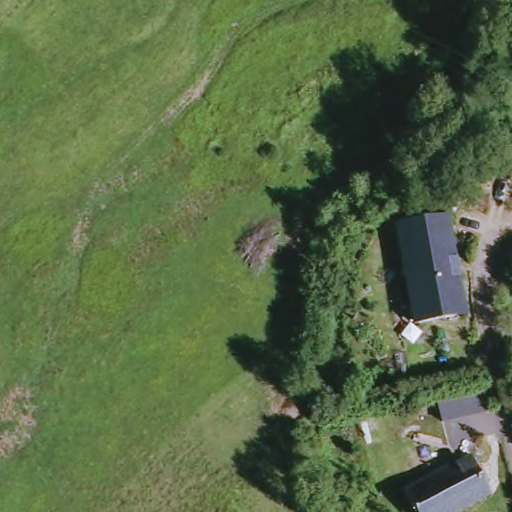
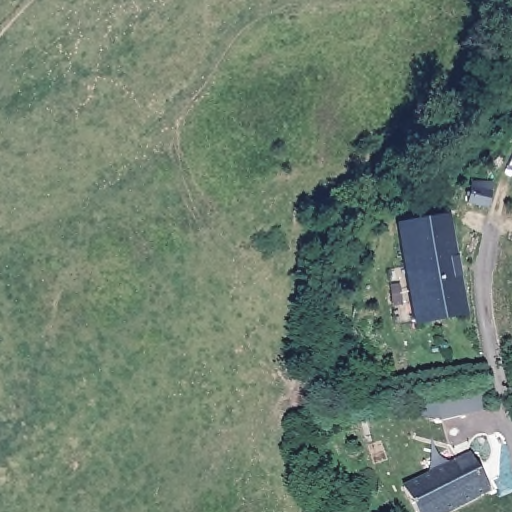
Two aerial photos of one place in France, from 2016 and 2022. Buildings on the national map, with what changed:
unchanged [(444,216),(460,315),(408,322),(391,224),(444,216)]
unchanged [(472,443),(496,484),(447,512),(394,512),(386,495),(472,443)]

